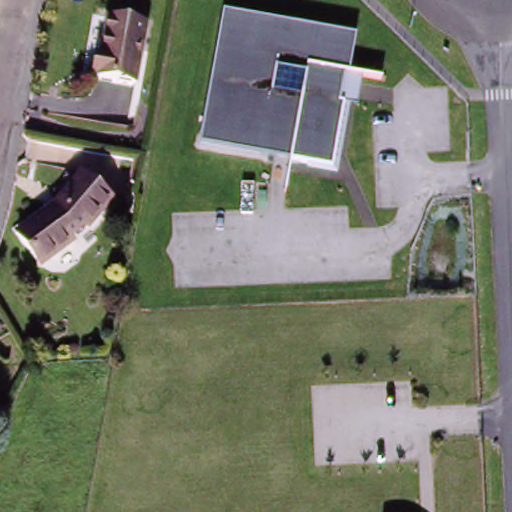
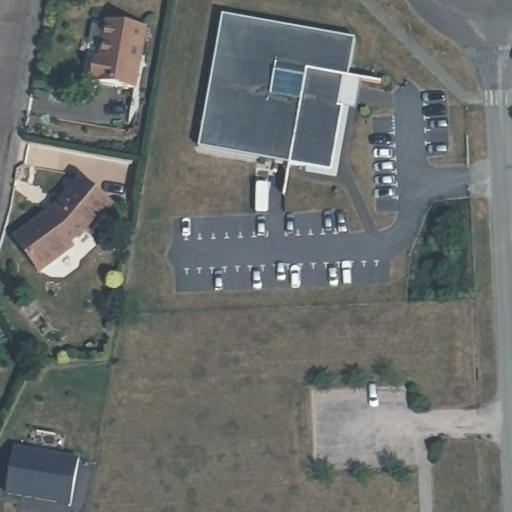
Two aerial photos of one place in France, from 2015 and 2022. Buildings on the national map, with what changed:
unchanged [(229,16),(362,39),(337,168),(205,149),(229,16)]
unchanged [(93,80),(97,55),(102,56),(106,40),(107,25),(145,33),(135,90),(93,80)]
unchanged [(50,213),(52,217),(61,209),(58,205),(79,178),(110,201),(90,233),(86,229),(71,242),(74,246),(41,270),(21,236),(50,213)]
new [(12,446),(77,456),(70,502),(5,491),(12,446)]

